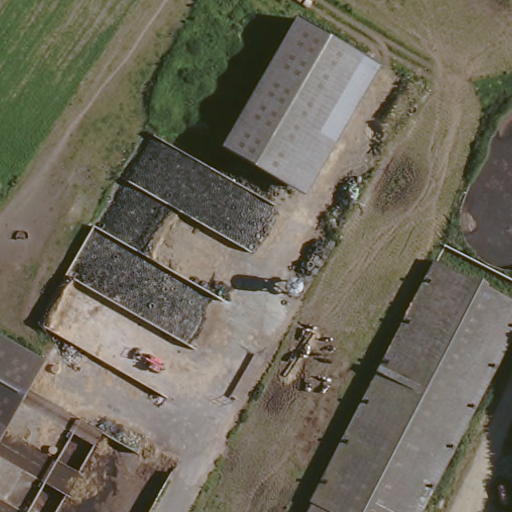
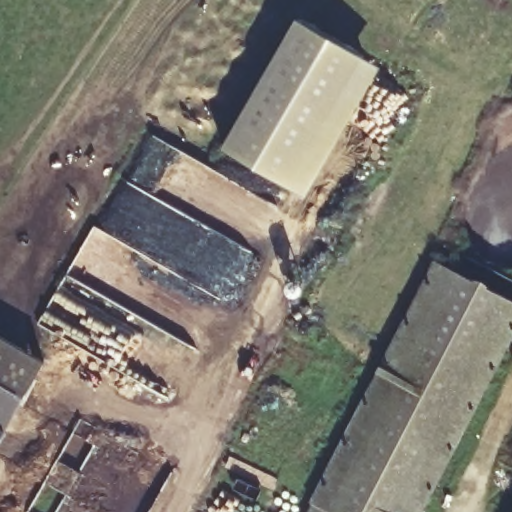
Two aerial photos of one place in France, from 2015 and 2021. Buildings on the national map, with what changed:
unchanged [(299,16),(386,65),(310,196),(226,146),(299,16)]
unchanged [(426,512),(307,512),(435,259),(512,295),(512,350),(426,512)]
unchanged [(26,400),(0,441),(0,347),(43,373),(26,400)]

